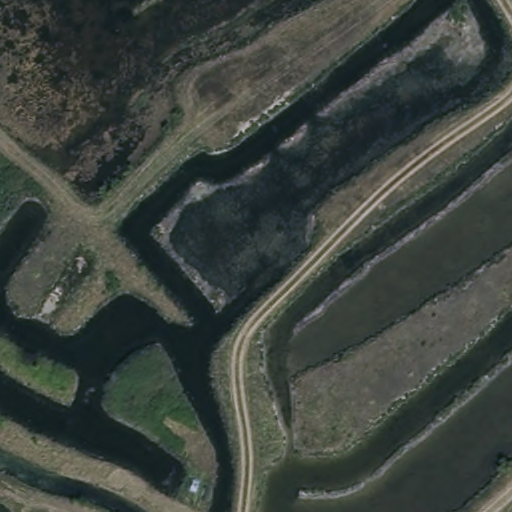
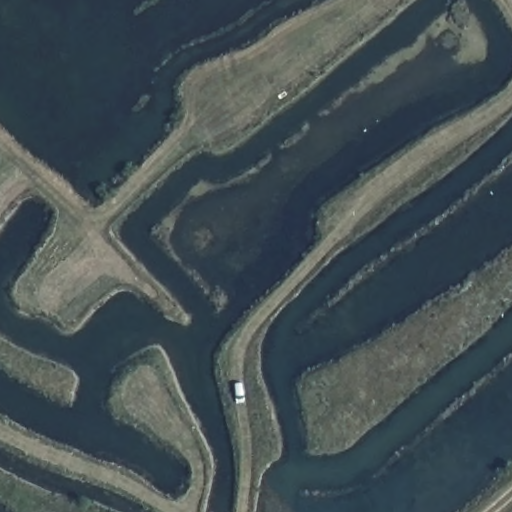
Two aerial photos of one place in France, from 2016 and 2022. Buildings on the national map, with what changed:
[]

